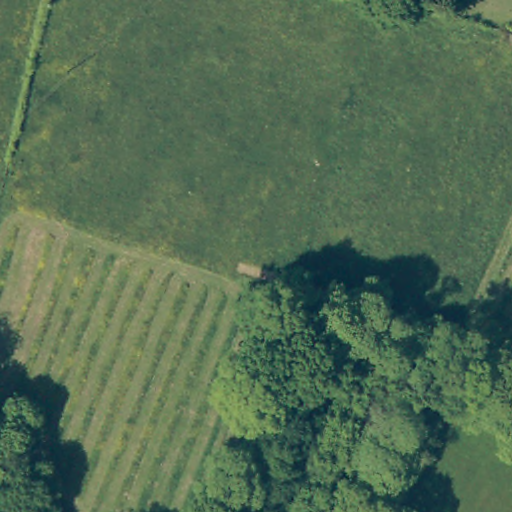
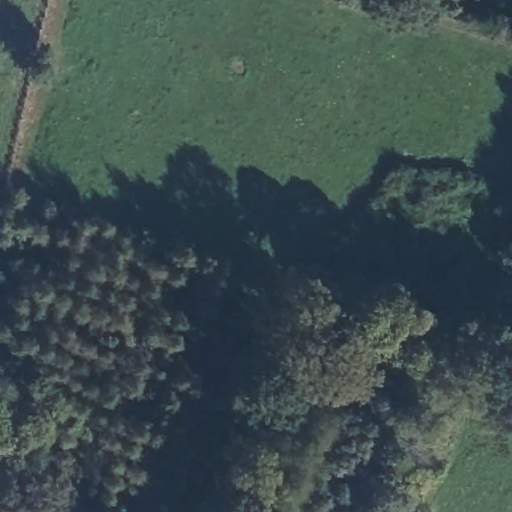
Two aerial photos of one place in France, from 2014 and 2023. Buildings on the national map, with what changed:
[]

